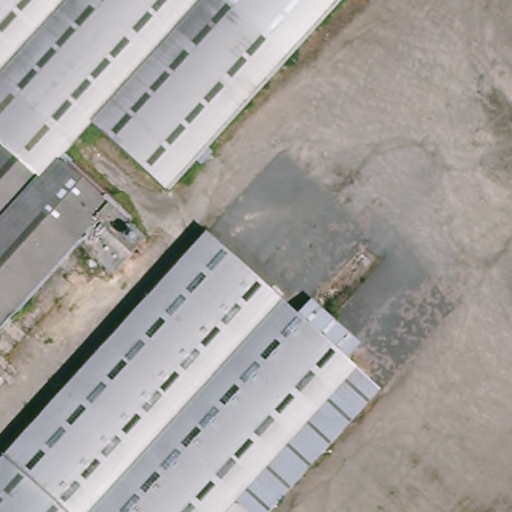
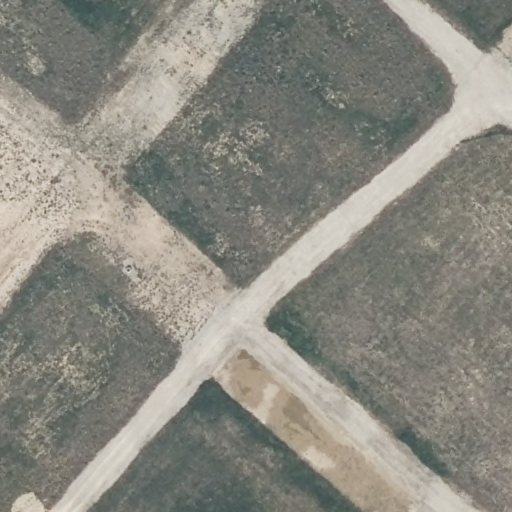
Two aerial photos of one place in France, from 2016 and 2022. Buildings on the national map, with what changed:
demolished [(192,154),(164,185),(90,119),(64,146),(63,146),(62,145),(15,98),(0,84),(0,0),(335,0),(204,142),(192,154)]
demolished [(62,145),(63,146),(64,146),(56,155),(150,241),(112,285),(75,251),(18,318),(3,306),(0,310),(0,84),(15,98),(62,145)]
demolished [(303,315),(317,297),(367,343),(352,360),(385,391),(349,429),(323,406),(170,272),(205,228),(303,315)]
demolished [(237,504),(246,512),(0,512),(0,464),(170,272),(323,406),(237,504)]
demolished [(18,318),(0,339),(0,310),(3,306),(18,318)]

